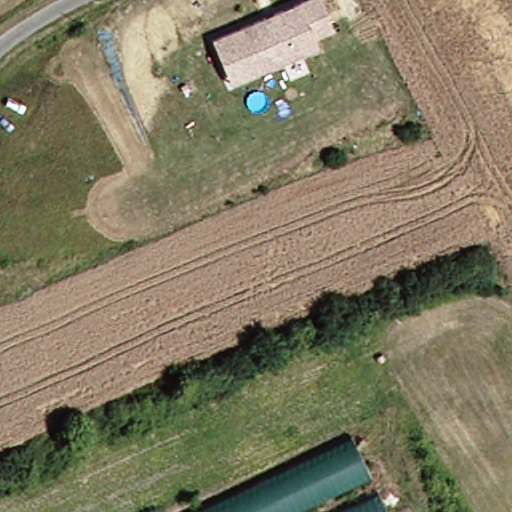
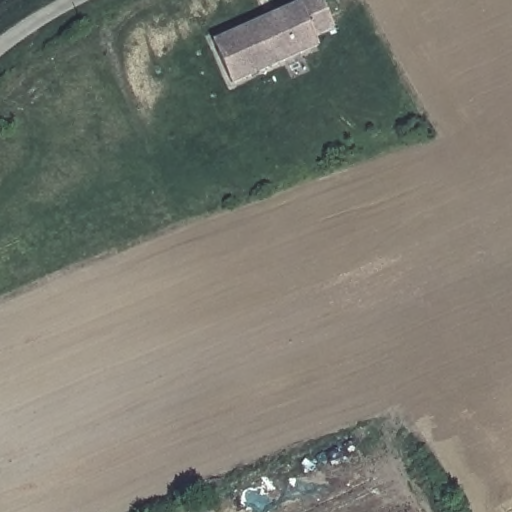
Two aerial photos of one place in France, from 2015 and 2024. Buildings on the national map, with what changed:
unchanged [(242,90),(238,81),(221,47),(319,0),(326,0),(342,31),(323,40),(327,49),(242,90)]
demolished [(203,512),(360,438),(378,475),(302,512),(203,512)]
demolished [(346,512),(387,493),(396,512),(346,512)]

